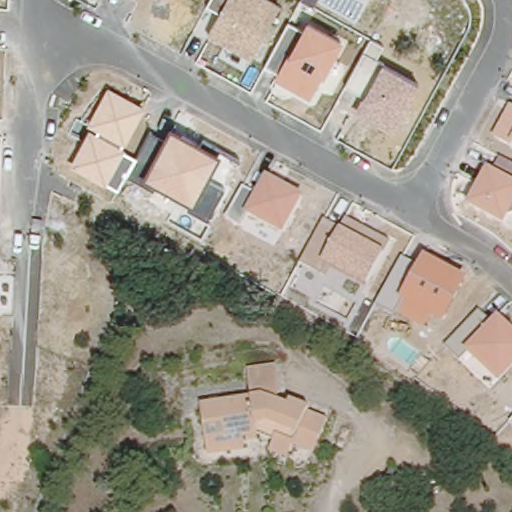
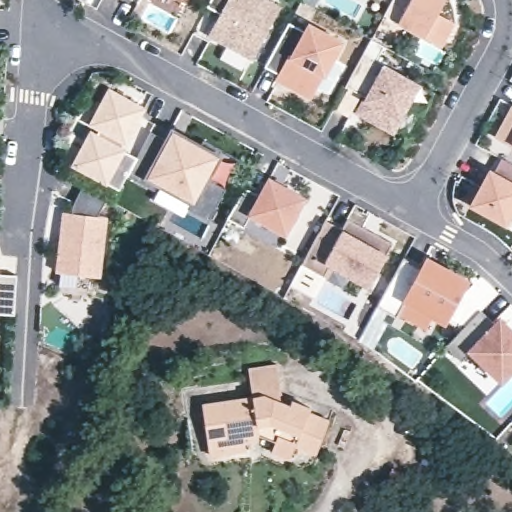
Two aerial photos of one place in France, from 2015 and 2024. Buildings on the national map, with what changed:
unchanged [(220,14),(207,7),(211,0),(267,0),(279,6),(252,59),(209,36),(220,14)]
new [(391,0),(443,0),(423,36),(383,15),(391,0)]
unchanged [(288,24),(302,31),(306,22),(343,42),(325,75),(311,99),(275,80),(279,72),(265,65),(288,24)]
unchanged [(363,96),(345,87),(370,40),(385,47),(378,60),(383,63),(417,82),(400,117),(392,131),(354,113),(363,96)]
unchanged [(92,127),(88,125),(108,88),(144,108),(122,150),(136,159),(150,132),(164,140),(170,127),(221,155),(207,181),(223,190),(208,219),(188,209),(191,203),(158,184),(154,190),(130,175),(121,192),(71,166),(92,127)]
unchanged [(509,105),(512,106),(512,142),(494,135),(509,105)]
unchanged [(488,167),(494,170),(502,158),(512,163),(512,216),(510,217),(505,224),(468,205),(488,167)]
unchanged [(244,187),(258,195),(267,176),(305,196),(284,235),(248,216),(242,226),(227,219),(244,187)]
new [(96,215),(108,215),(101,275),(57,270),(62,211),(72,212),(82,185),(106,197),(96,215)]
unchanged [(324,220),(341,228),(346,217),(390,241),(383,253),(367,285),(332,266),(325,276),(301,263),(324,220)]
unchanged [(401,257),(418,266),(423,255),(467,277),(447,322),(430,315),(424,328),(394,314),(377,305),(401,257)]
unchanged [(0,316),(0,277),(16,277),(13,316),(0,316)]
unchanged [(444,346),(479,310),(491,323),(499,316),(512,329),(512,370),(500,382),(470,353),(460,362),(444,346)]
unchanged [(271,447),(273,442),(275,437),(260,430),(259,430),(260,436),(248,437),(247,432),(245,433),(245,435),(247,447),(209,451),(207,436),(202,398),(252,391),(248,363),(278,359),(281,383),(274,384),(273,393),(290,400),(292,395),(310,402),(308,406),(329,415),(320,438),(316,450),(294,441),(291,450),(290,455),(271,447)]
unchanged [(510,422),(512,421),(512,424),(510,422)]
unchanged [(410,475),(402,491),(384,482),(393,466),(410,475)]

